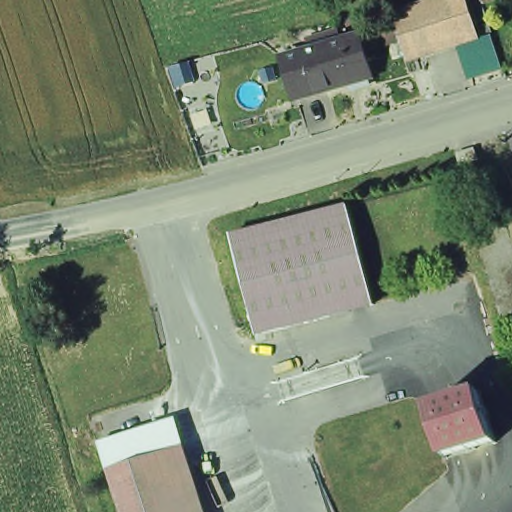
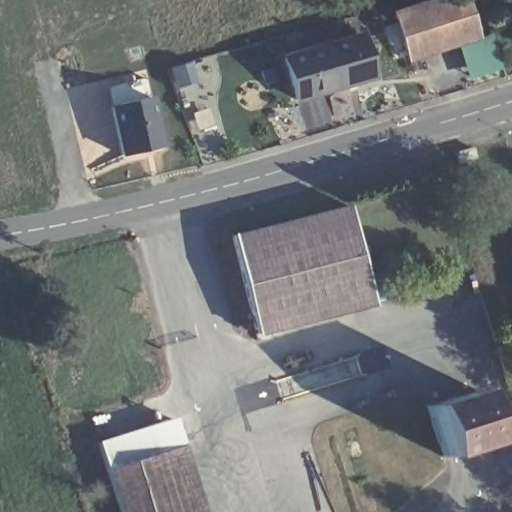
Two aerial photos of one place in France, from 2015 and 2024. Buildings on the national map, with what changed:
unchanged [(406,63),(386,11),(420,0),(467,0),(481,41),(457,47),(406,63)]
unchanged [(289,58),(363,37),(376,77),(301,99),(289,58)]
unchanged [(481,41),(490,37),(500,67),(465,77),(457,47),(481,41)]
new [(194,61),(201,82),(177,90),(171,67),(194,61)]
new [(150,76),(167,150),(120,157),(107,88),(150,76)]
unchanged [(305,228),(347,215),(375,308),(261,342),(235,248),(305,228)]
unchanged [(434,417),(481,402),(495,446),(447,461),(434,417)]
unchanged [(94,442),(173,413),(204,512),(116,512),(94,442)]

